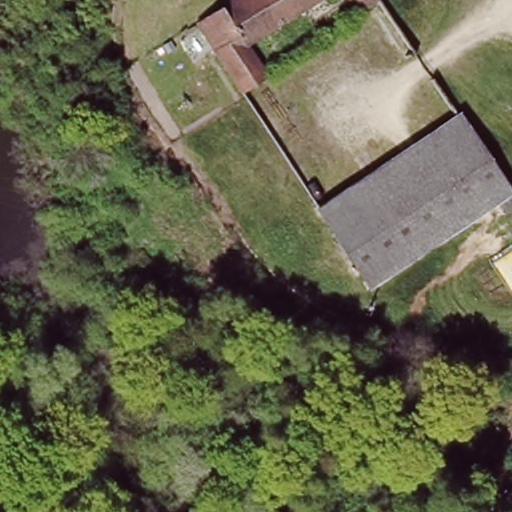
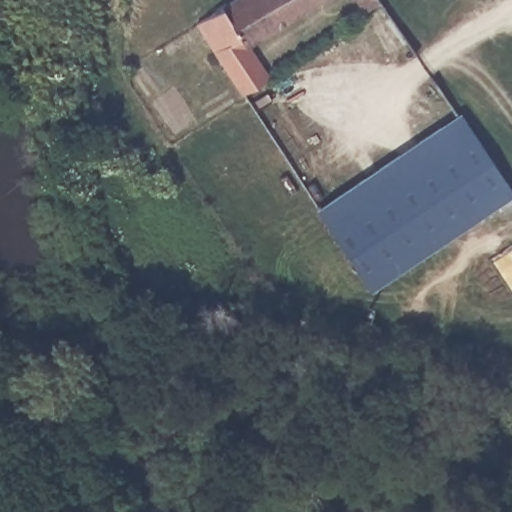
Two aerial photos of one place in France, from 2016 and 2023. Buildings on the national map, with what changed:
unchanged [(252,42),(277,72),(243,96),(197,15),(224,0),(320,0),(252,42)]
unchanged [(366,12),(360,0),(379,0),(366,12)]
unchanged [(462,113),(510,183),(369,278),(320,204),(462,113)]

